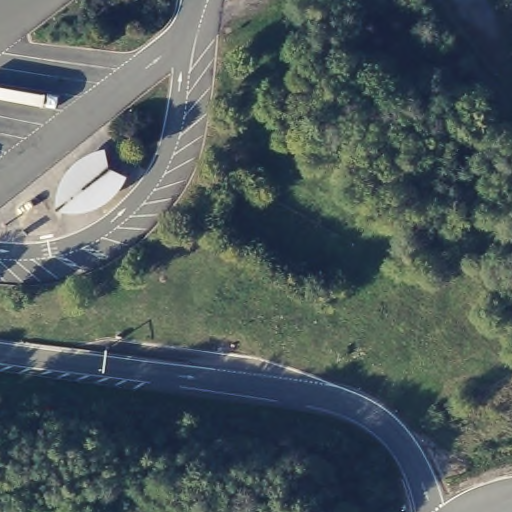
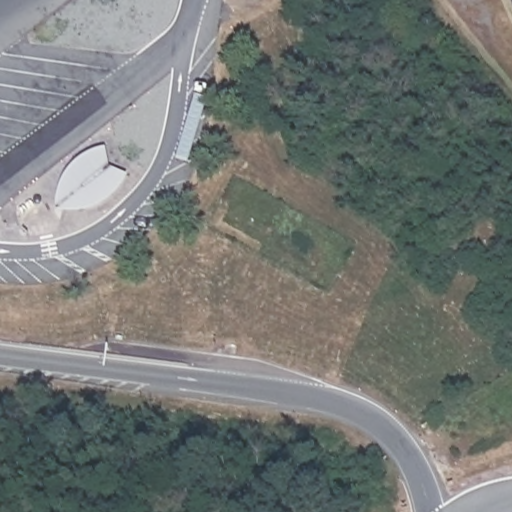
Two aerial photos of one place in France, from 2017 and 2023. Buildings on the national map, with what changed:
unchanged [(85,163),(106,154),(110,170),(120,171),(124,177),(105,198),(89,207),(71,180),(85,163)]

